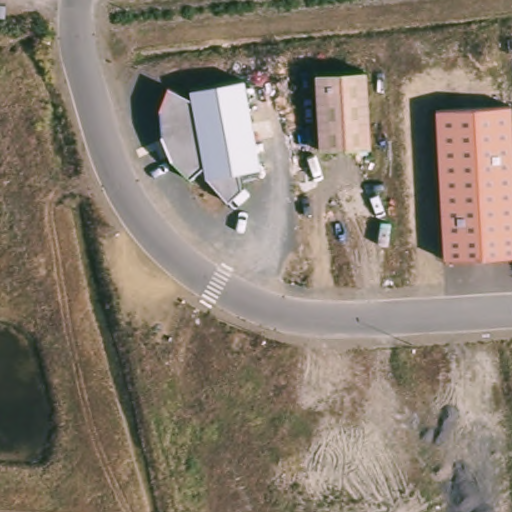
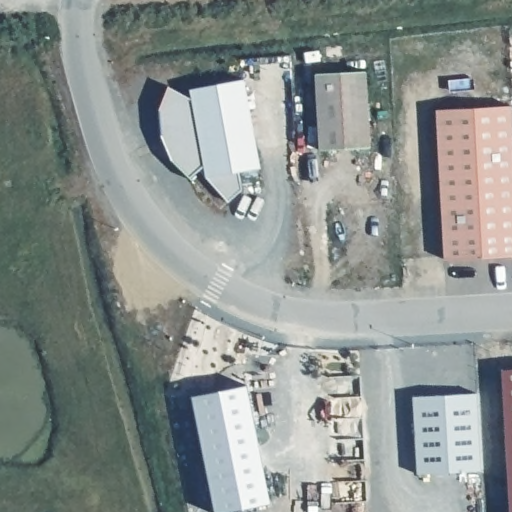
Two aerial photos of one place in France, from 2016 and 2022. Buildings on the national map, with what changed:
unchanged [(364,70),(368,145),(319,149),(314,71),(364,70)]
unchanged [(190,96),(189,87),(242,79),(259,165),(239,170),(241,190),(227,202),(196,170),(187,176),(171,160),(161,133),(159,107),(167,85),(190,96)]
unchanged [(512,134),(512,254),(444,256),(435,108),(511,105),(512,134)]
new [(512,512),(508,512),(500,369),(512,368),(512,512)]
new [(270,501),(219,512),(214,512),(191,395),(246,384),(270,501)]
new [(480,470),(417,474),(412,395),(475,393),(480,470)]

